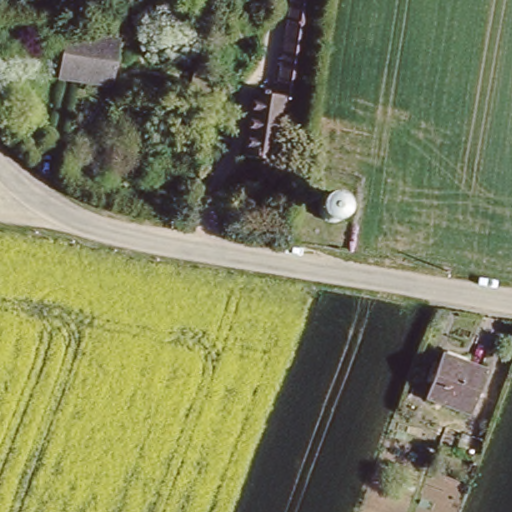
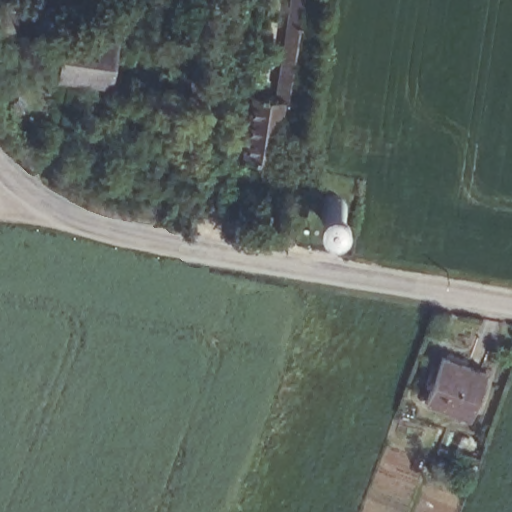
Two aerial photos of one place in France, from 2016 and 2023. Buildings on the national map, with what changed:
unchanged [(278,99),(295,0),(322,0),(306,104),(278,99)]
unchanged [(127,35),(117,91),(58,84),(70,27),(127,35)]
unchanged [(286,160),(282,159),(280,159),(258,156),(255,155),(260,94),(278,99),(306,104),(303,134),(299,162),(286,160)]
unchanged [(493,373),(475,418),(433,401),(450,357),(493,373)]

